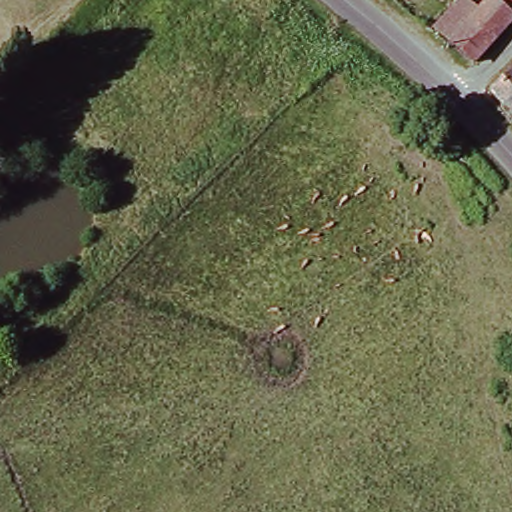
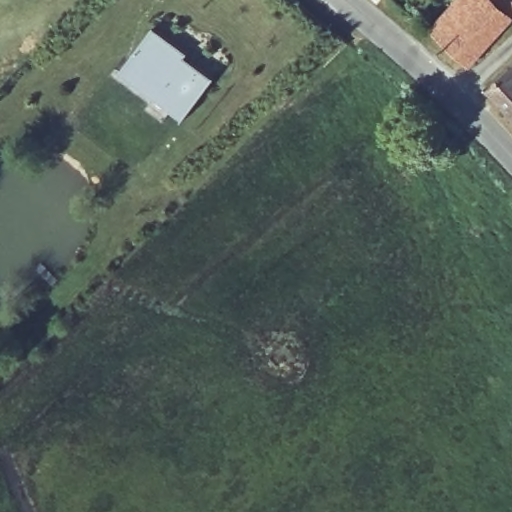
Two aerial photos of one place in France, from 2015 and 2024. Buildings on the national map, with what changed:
unchanged [(511,22),(471,62),(451,42),(490,0),(511,22)]
new [(156,30),(217,80),(185,119),(181,124),(120,74),(129,62),(156,30)]
unchanged [(512,78),(512,121),(491,98),(512,78)]

